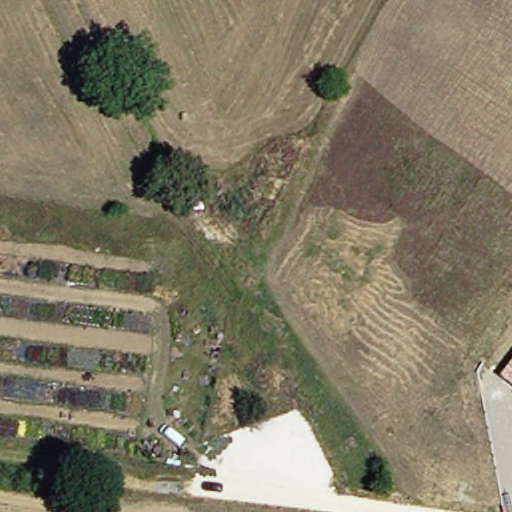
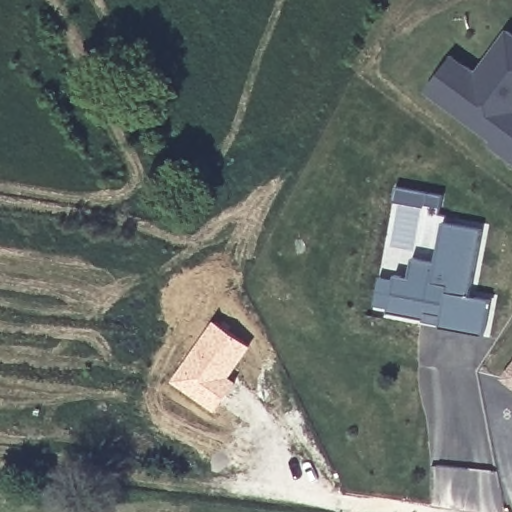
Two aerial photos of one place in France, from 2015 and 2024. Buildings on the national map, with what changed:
new [(494,140),(428,92),(455,55),(478,71),(508,30),(512,33),(512,161),(490,144),(494,140)]
new [(395,277),(411,279),(413,260),(435,265),(444,222),(481,230),(469,297),(490,301),(484,336),(441,327),(442,316),(426,313),(425,320),(387,310),(395,277)]
new [(230,376),(238,382),(215,412),(171,380),(215,319),(252,346),(230,376)]
unchanged [(512,363),(512,387),(500,378),(512,363)]

